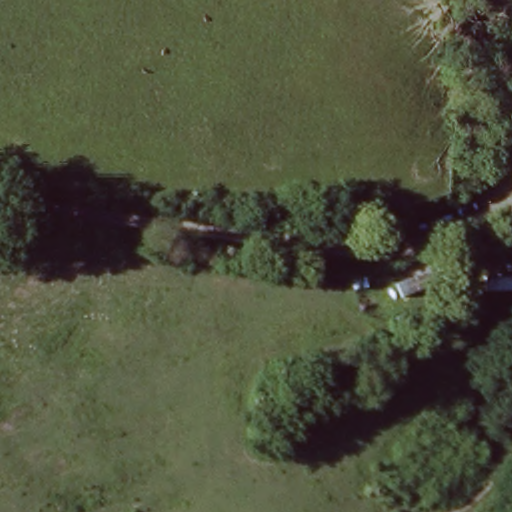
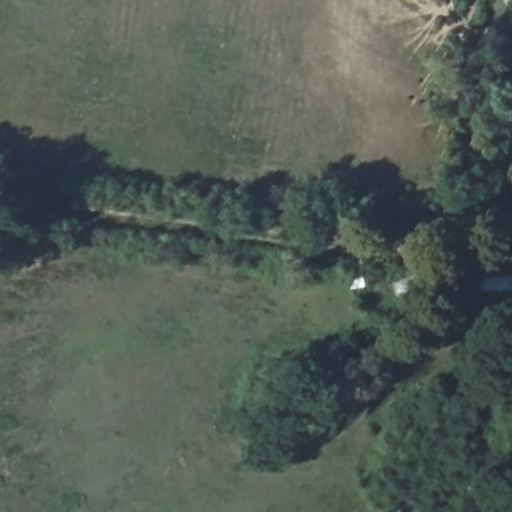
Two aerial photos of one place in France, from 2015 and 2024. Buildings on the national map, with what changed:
[]

